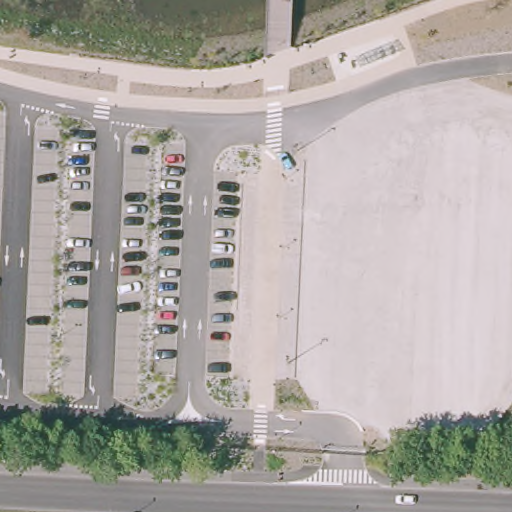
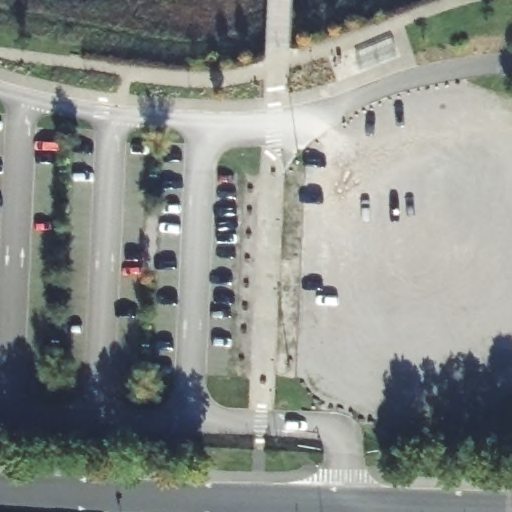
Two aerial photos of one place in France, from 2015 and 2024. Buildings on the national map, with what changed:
[]

